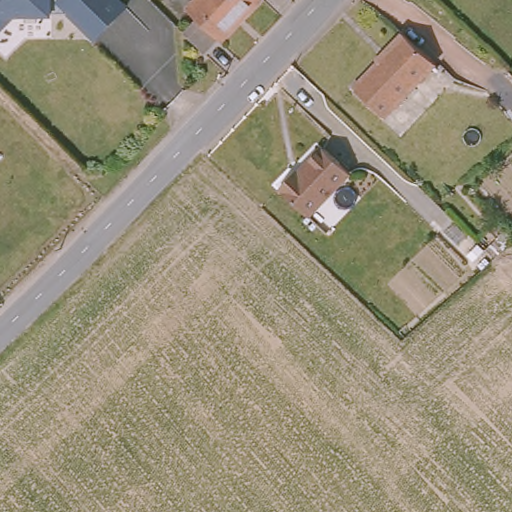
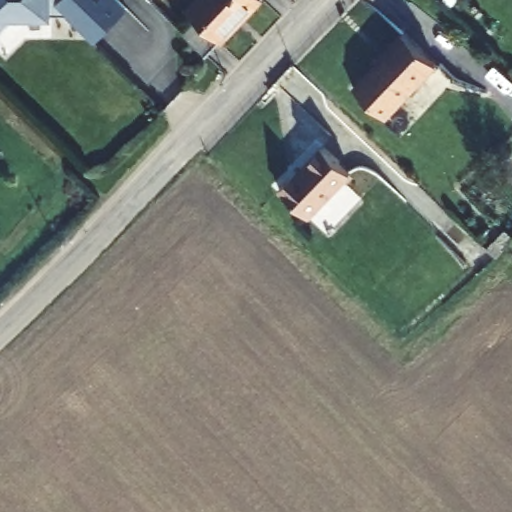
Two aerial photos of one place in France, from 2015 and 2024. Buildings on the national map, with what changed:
unchanged [(129,19),(105,44),(91,31),(83,38),(71,26),(8,27),(7,39),(0,46),(0,0),(108,0),(129,19)]
unchanged [(152,11),(141,0),(162,0),(152,11)]
unchanged [(184,28),(201,12),(194,3),(197,0),(257,0),(207,51),(184,28)]
unchanged [(405,33),(438,65),(386,117),(356,87),(389,53),(387,51),(405,33)]
unchanged [(299,166),(301,168),(325,143),(353,169),(311,212),(282,183),(299,166)]

